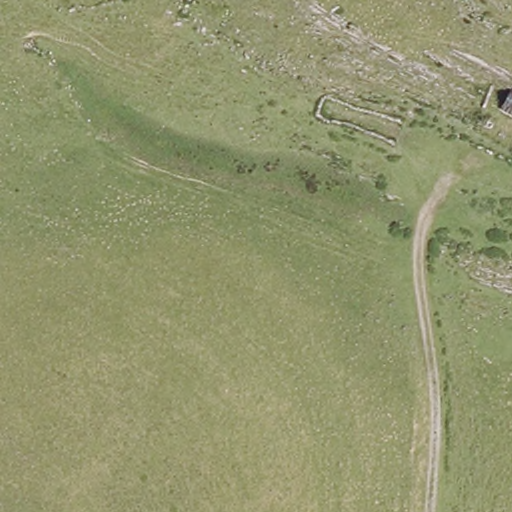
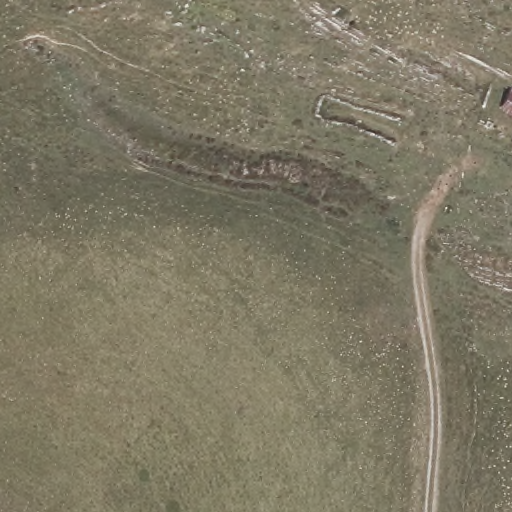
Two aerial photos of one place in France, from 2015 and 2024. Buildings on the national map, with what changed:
unchanged [(497,111),(512,90),(512,117),(497,111)]

